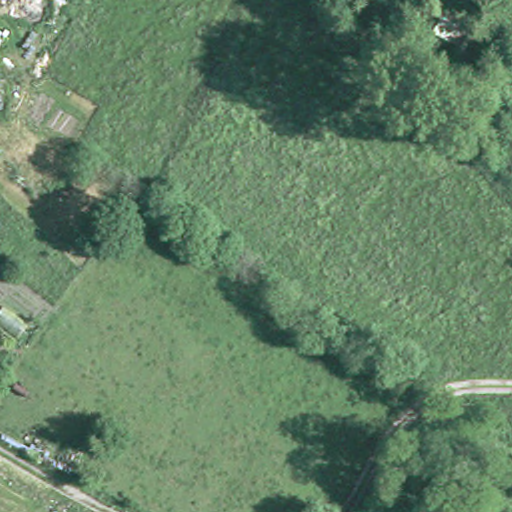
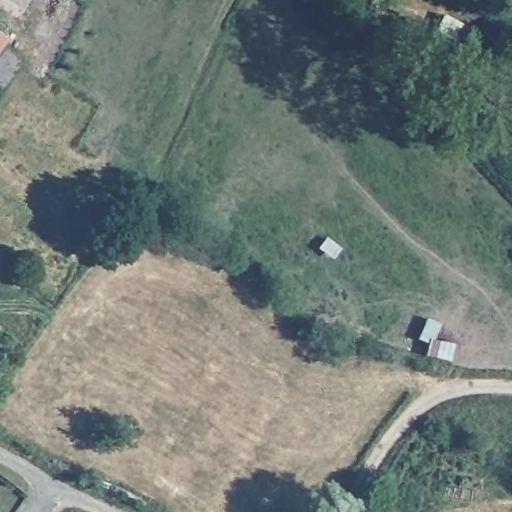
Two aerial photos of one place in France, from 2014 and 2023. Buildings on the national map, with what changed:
[]

